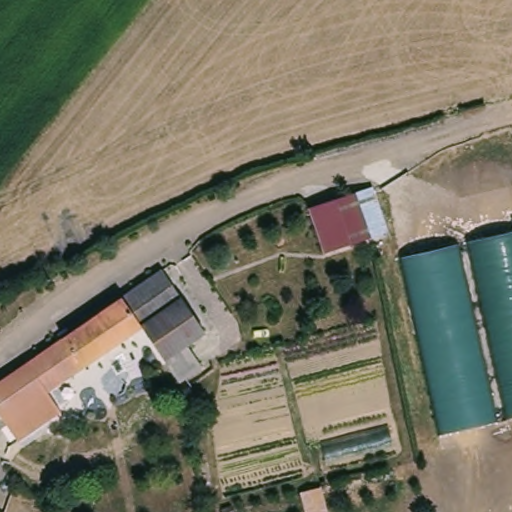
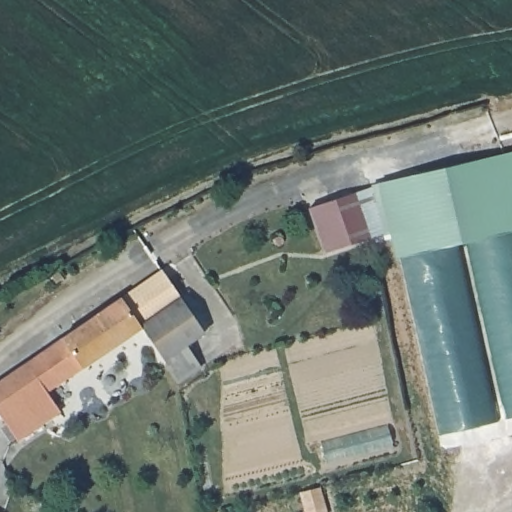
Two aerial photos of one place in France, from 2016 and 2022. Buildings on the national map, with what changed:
new [(456,245),(405,256),(396,258),(379,181),(512,151),(512,232),(473,241),(456,245)]
unchanged [(334,200),(372,187),(388,232),(350,244),(334,200)]
unchanged [(350,244),(324,252),(309,208),(334,200),(350,244)]
unchanged [(512,232),(512,410),(473,241),(512,232)]
unchanged [(456,245),(490,422),(443,433),(405,256),(456,245)]
unchanged [(167,270),(209,332),(191,344),(205,366),(184,381),(169,359),(147,327),(51,392),(64,412),(23,440),(0,406),(0,383),(31,362),(167,270)]
unchanged [(63,277),(56,282),(51,276),(58,271),(63,277)]

